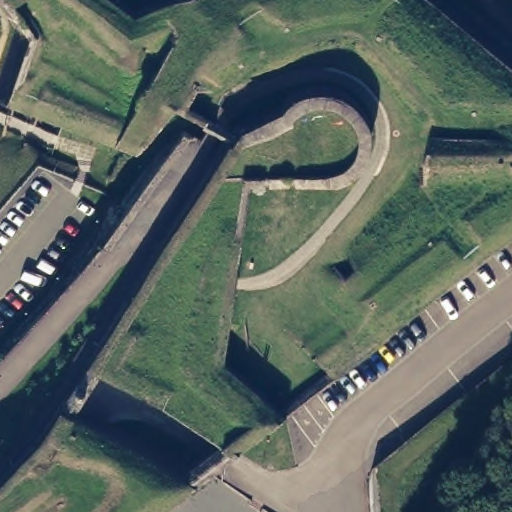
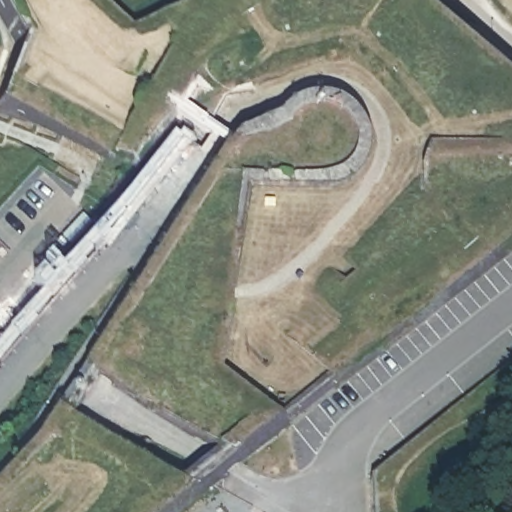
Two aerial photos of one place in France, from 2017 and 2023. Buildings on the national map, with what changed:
unchanged [(325,169),(304,162),(287,147),(286,117),(302,96),(325,89),(351,96),(361,112),(364,130),(357,150),(341,169),(325,169)]

